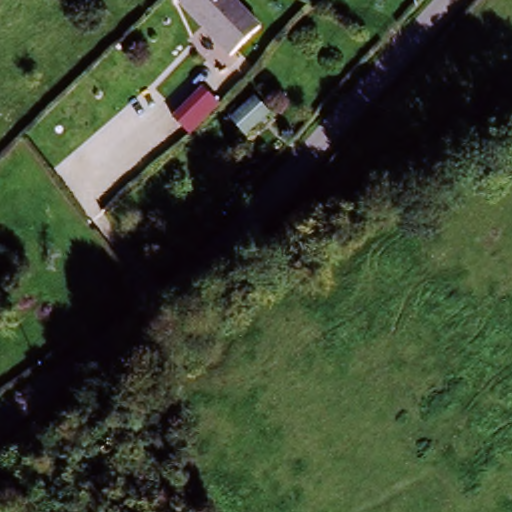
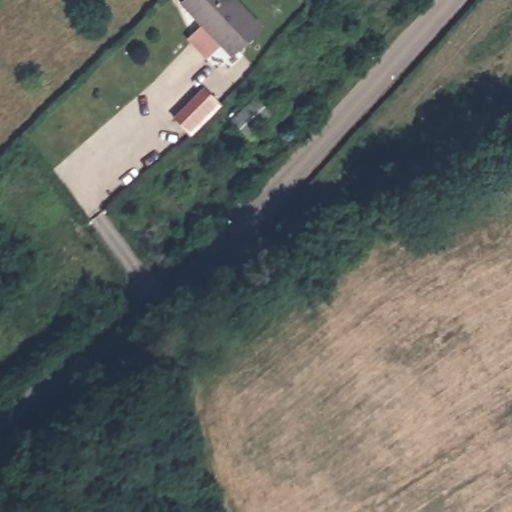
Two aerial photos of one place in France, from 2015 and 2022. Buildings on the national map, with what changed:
unchanged [(238,52),(178,3),(180,0),(238,0),(264,21),(238,52)]
unchanged [(201,89),(215,103),(190,127),(175,114),(201,89)]
unchanged [(255,96),(269,115),(242,136),(227,117),(255,96)]

